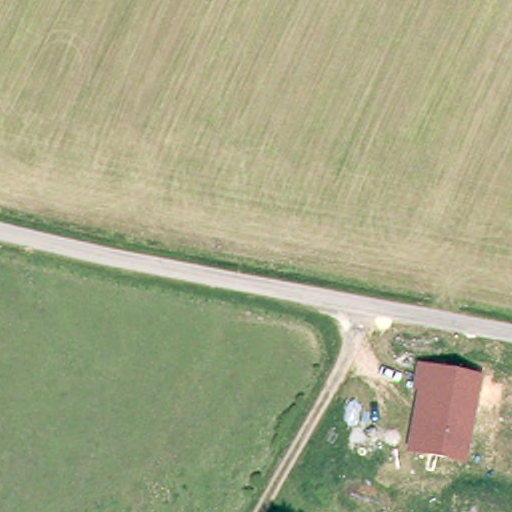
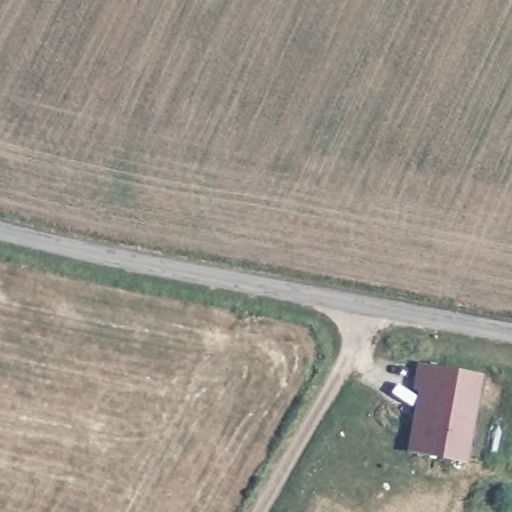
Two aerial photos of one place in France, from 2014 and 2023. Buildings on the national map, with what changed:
unchanged [(409,449),(423,390),(414,388),(419,361),(483,375),(467,460),(409,449)]

